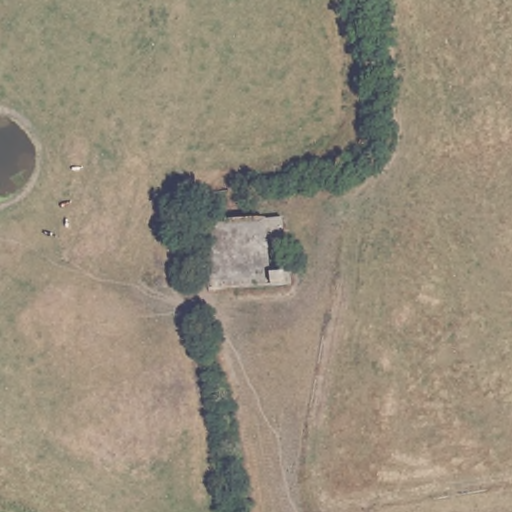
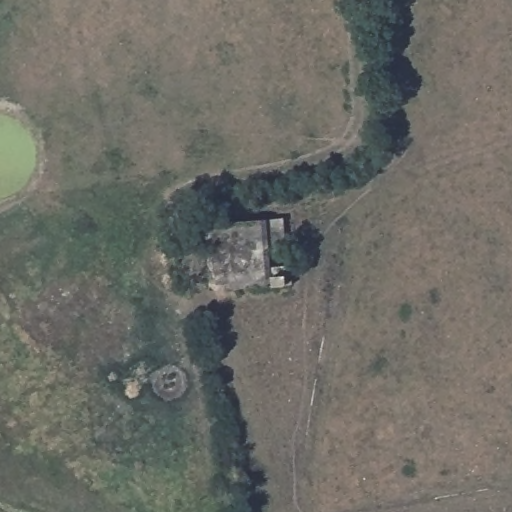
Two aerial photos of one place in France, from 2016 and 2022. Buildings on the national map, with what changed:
unchanged [(284,220),(294,285),(207,287),(204,223),(284,220)]

